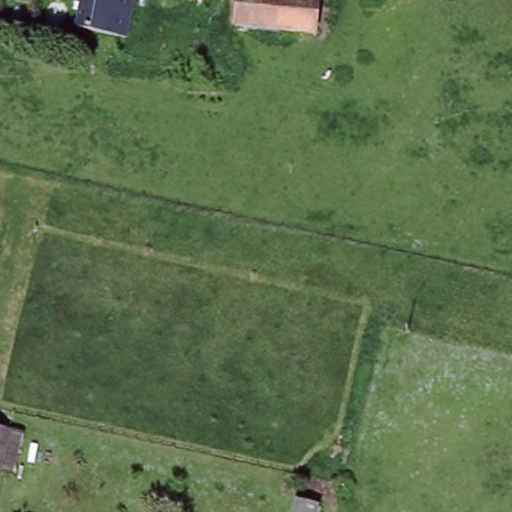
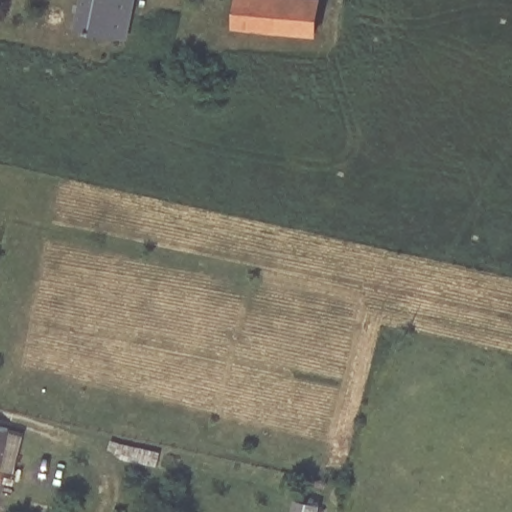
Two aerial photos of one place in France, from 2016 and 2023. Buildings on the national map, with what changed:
unchanged [(80,0),(129,0),(122,29),(76,18),(80,0)]
unchanged [(239,0),(318,0),(312,31),(236,15),(239,0)]
unchanged [(12,426),(3,468),(0,468),(0,423),(12,426)]
unchanged [(321,512),(294,512),(298,493),(323,501),(321,512)]

